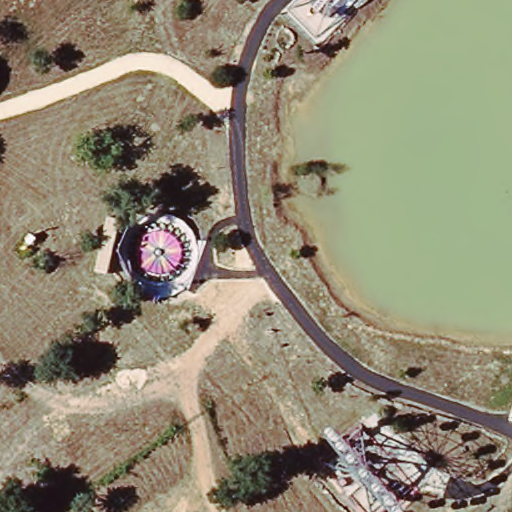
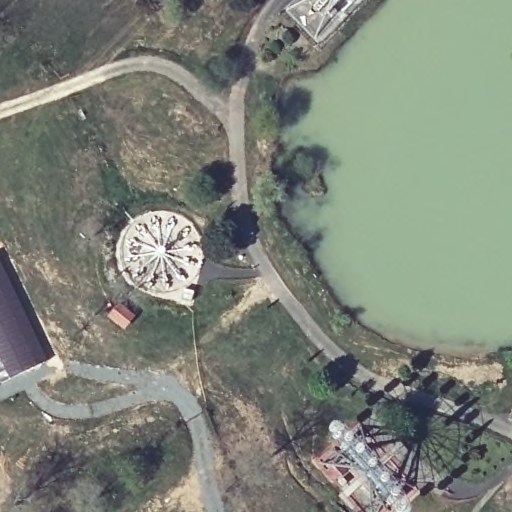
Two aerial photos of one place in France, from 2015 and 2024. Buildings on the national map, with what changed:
new [(47,361),(0,385),(0,263),(47,361)]

